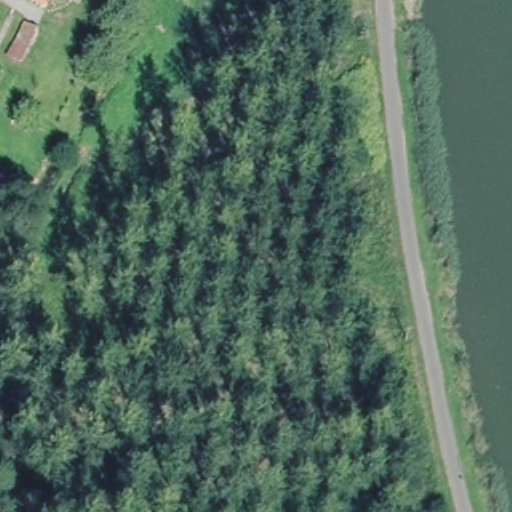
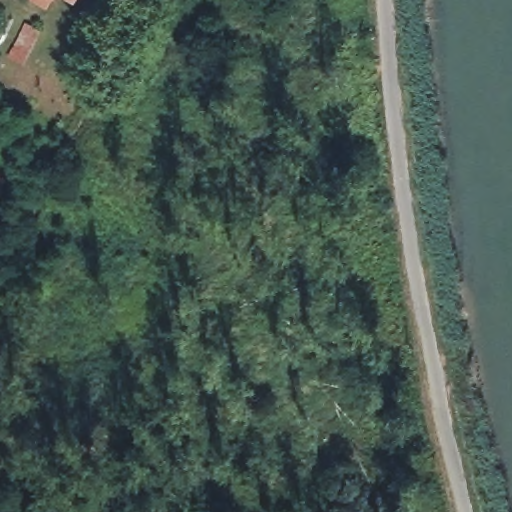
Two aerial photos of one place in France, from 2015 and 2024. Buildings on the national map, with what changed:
unchanged [(26,22),(40,30),(28,52),(15,45),(23,29),(26,22)]

